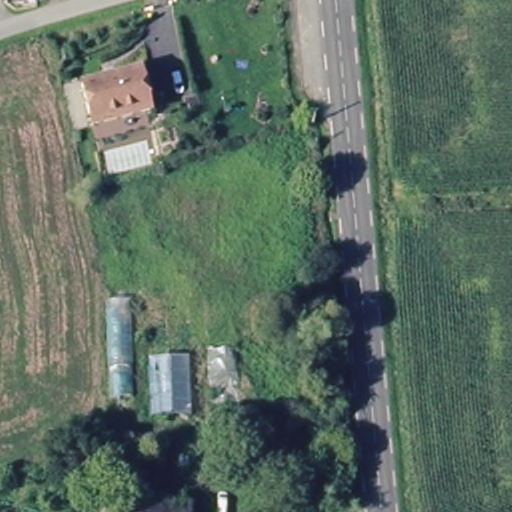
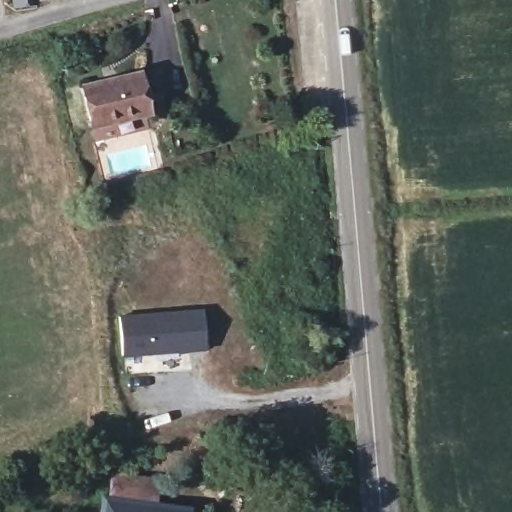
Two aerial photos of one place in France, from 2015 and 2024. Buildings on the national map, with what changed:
unchanged [(27,0),(28,6),(14,8),(13,0),(27,0)]
unchanged [(79,92),(138,76),(150,118),(90,134),(79,92)]
new [(120,316),(204,312),(205,351),(122,356),(120,316)]
unchanged [(109,494),(172,512),(105,512),(109,494)]

